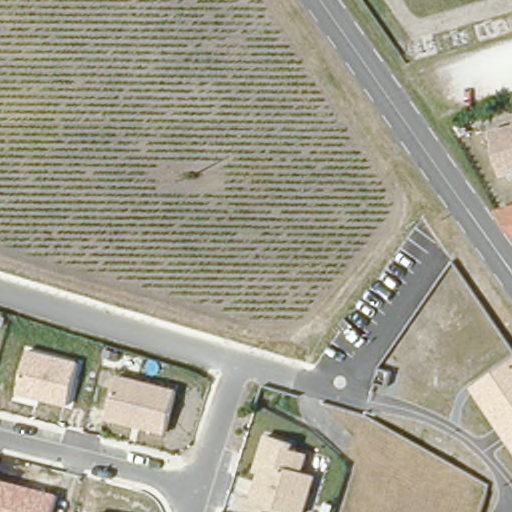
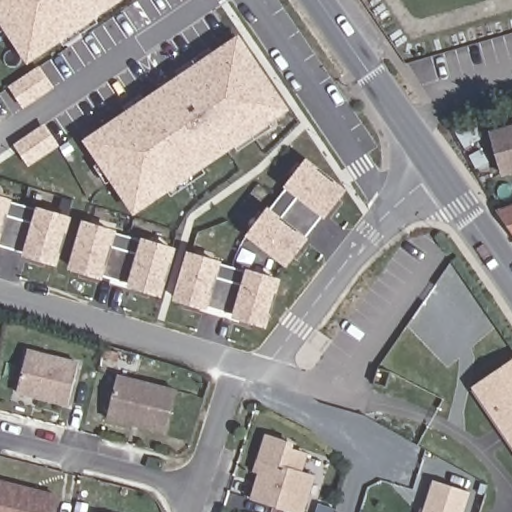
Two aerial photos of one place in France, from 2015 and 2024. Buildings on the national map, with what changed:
new [(30,67),(0,21),(0,0),(127,0),(30,67)]
new [(242,35),(292,110),(136,214),(85,139),(242,35)]
new [(44,66),(57,88),(25,108),(10,87),(44,66)]
unchanged [(512,174),(503,177),(490,130),(512,123),(512,174)]
new [(45,126),(60,150),(30,167),(15,145),(45,126)]
new [(310,157),(352,192),(290,269),(249,235),(310,157)]
new [(285,281),(270,328),(0,249),(0,197),(285,281)]
unchanged [(512,239),(508,241),(489,212),(492,211),(512,205),(512,239)]
unchanged [(70,407),(16,395),(29,348),(80,361),(70,407)]
unchanged [(512,361),(512,445),(473,387),(512,361)]
unchanged [(167,435),(107,420),(119,375),(176,388),(167,435)]
unchanged [(260,475),(251,471),(263,433),(296,442),(294,450),(308,454),(304,472),(318,476),(307,512),(292,512),(252,501),(260,475)]
unchanged [(0,512),(0,478),(58,494),(54,512),(0,512)]
new [(467,512),(426,512),(437,481),(473,493),(467,512)]

